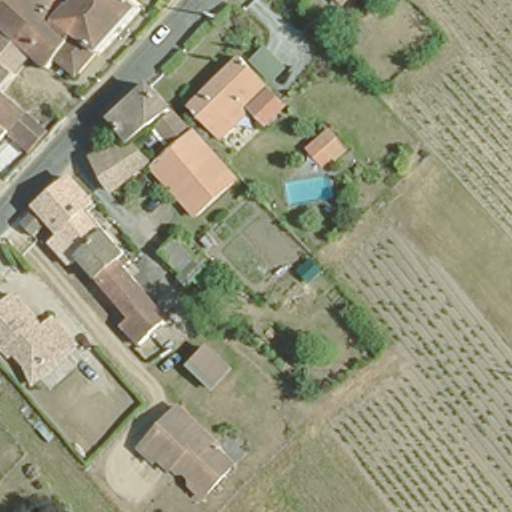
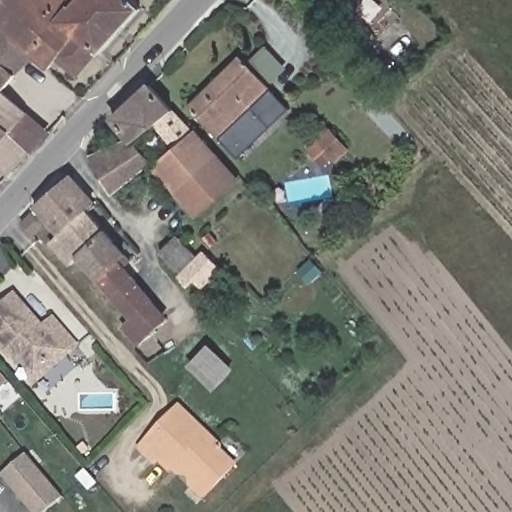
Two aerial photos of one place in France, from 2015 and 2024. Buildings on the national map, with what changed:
unchanged [(9,178),(0,169),(0,0),(135,0),(140,5),(103,48),(100,46),(78,70),(59,54),(49,64),(32,50),(0,86),(26,109),(42,124),(50,132),(30,154),(9,178)]
unchanged [(336,0),(348,0),(342,6),(336,0)]
unchanged [(264,119),(249,104),(218,132),(190,102),(242,52),(271,84),(269,85),(284,100),(264,119)]
unchanged [(131,132),(114,111),(149,79),(150,80),(173,105),(136,139),(131,132)]
unchanged [(156,161),(170,149),(193,128),(216,153),(179,186),(156,161)]
unchanged [(136,139),(150,154),(113,182),(96,149),(131,132),(136,139)]
unchanged [(235,173),(200,207),(179,186),(216,153),(235,173)]
unchanged [(57,228),(33,199),(71,169),(96,197),(88,204),(57,228)]
unchanged [(126,248),(120,254),(167,310),(136,337),(120,319),(129,312),(76,250),(69,255),(51,234),(57,228),(88,204),(126,248)]
unchanged [(44,217),(31,228),(21,216),(34,205),(44,217)]
unchanged [(200,256),(206,251),(224,269),(202,288),(196,283),(192,288),(180,275),(183,274),(162,253),(180,235),(200,256)]
unchanged [(29,368),(26,361),(14,348),(9,352),(3,345),(0,342),(0,302),(13,291),(41,323),(52,314),(77,342),(65,352),(34,380),(29,368)]
new [(0,390),(0,373),(9,383),(0,390)]
unchanged [(165,463),(154,452),(151,455),(139,443),(179,403),(215,439),(216,446),(232,462),(204,488),(189,473),(182,464),(174,473),(165,463)]
new [(64,498),(47,512),(31,512),(0,476),(27,454),(64,498)]

